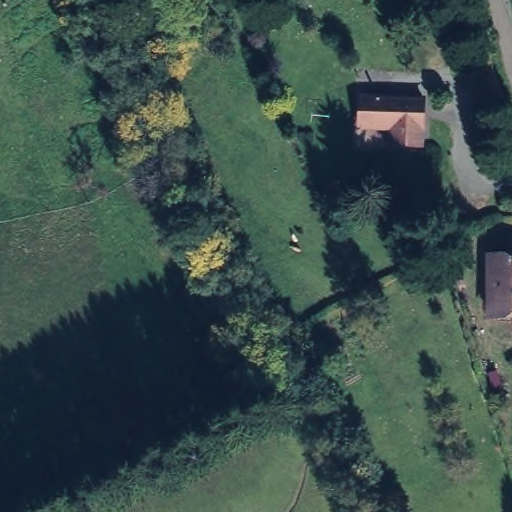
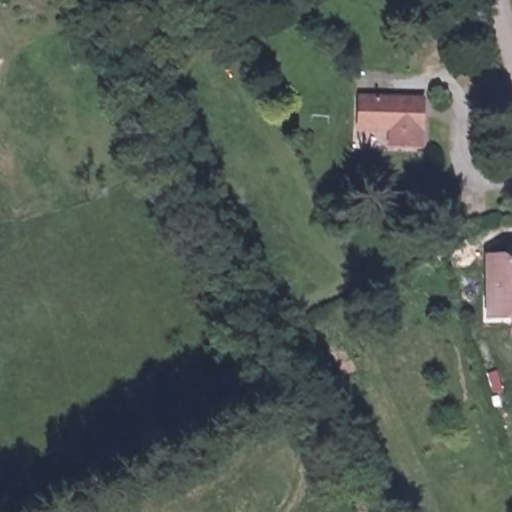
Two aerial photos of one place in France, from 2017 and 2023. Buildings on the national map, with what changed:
unchanged [(423,135),(390,133),(392,121),(359,115),(361,85),(424,92),(423,135)]
unchanged [(494,323),(484,257),(512,254),(512,321),(494,323)]

